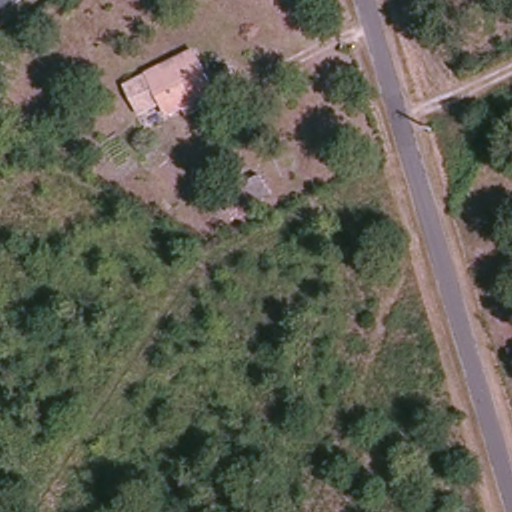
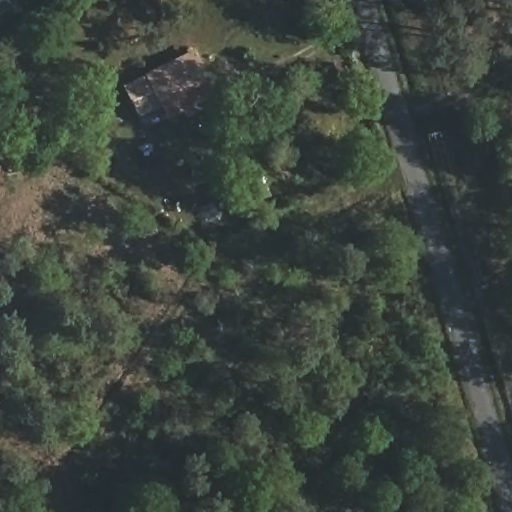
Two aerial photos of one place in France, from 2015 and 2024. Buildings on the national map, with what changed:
unchanged [(166,101),(136,114),(125,84),(151,72),(195,52),(215,96),(172,115),(166,101)]

